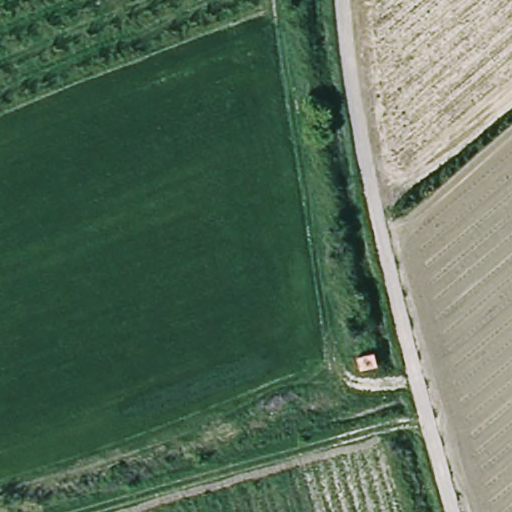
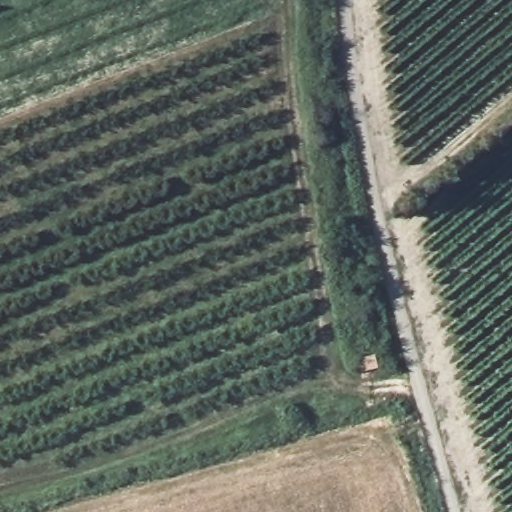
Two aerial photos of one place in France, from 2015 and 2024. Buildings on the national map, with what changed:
unchanged [(379,367),(361,370),(357,355),(376,353),(379,367)]

